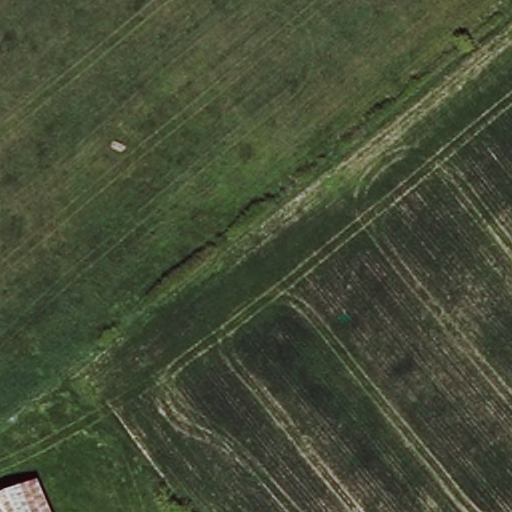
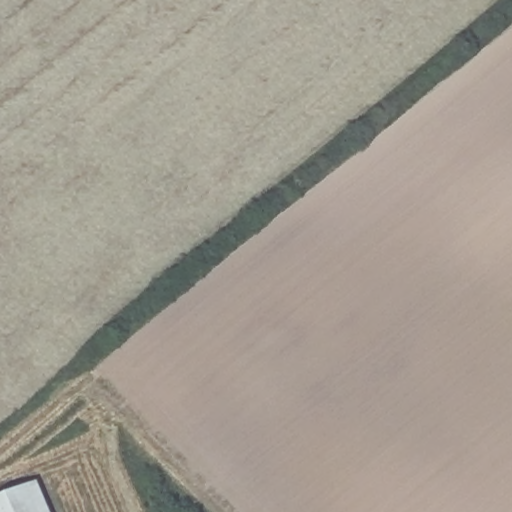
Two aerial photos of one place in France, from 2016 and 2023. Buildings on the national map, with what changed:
unchanged [(40,512),(0,512),(0,493),(25,477),(40,512)]

